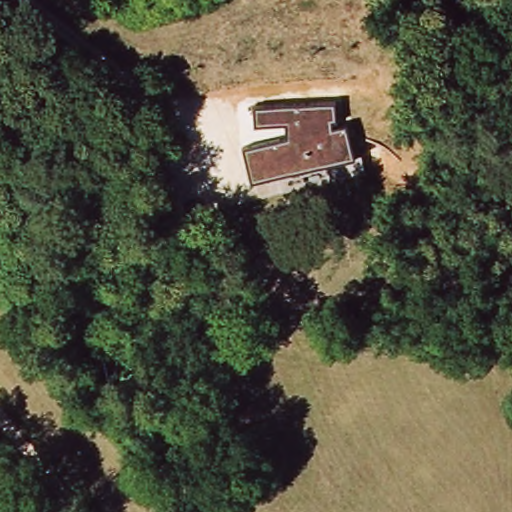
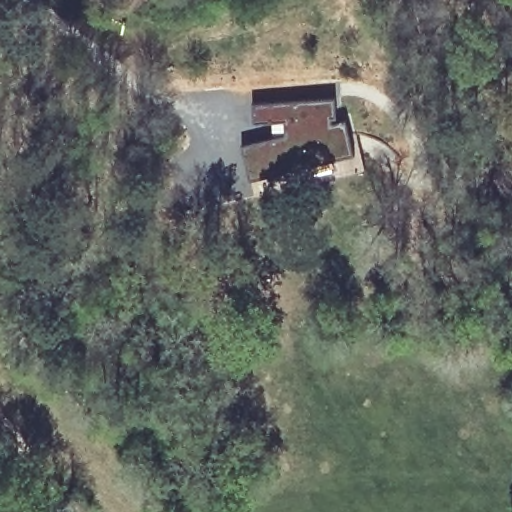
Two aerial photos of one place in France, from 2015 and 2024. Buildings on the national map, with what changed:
unchanged [(245,146),(289,135),(287,121),(254,122),(253,102),(333,97),(335,112),(330,114),(330,124),(346,121),(354,153),(252,178),(245,146)]

